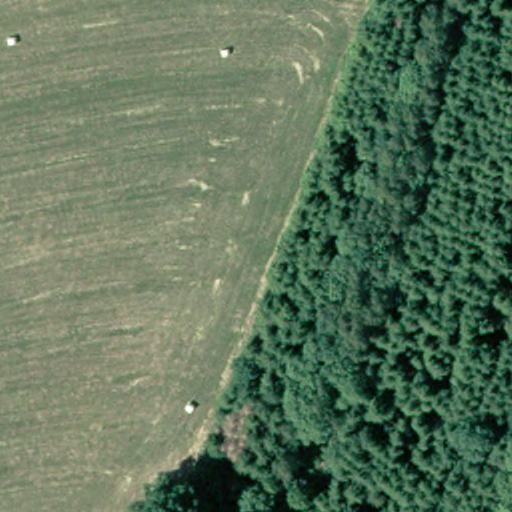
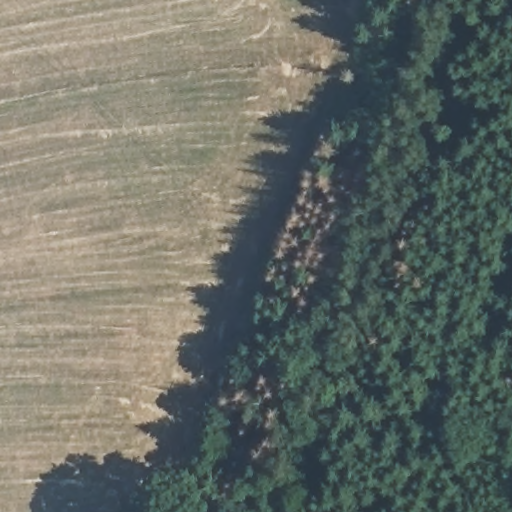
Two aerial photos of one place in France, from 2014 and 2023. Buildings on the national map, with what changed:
[]

